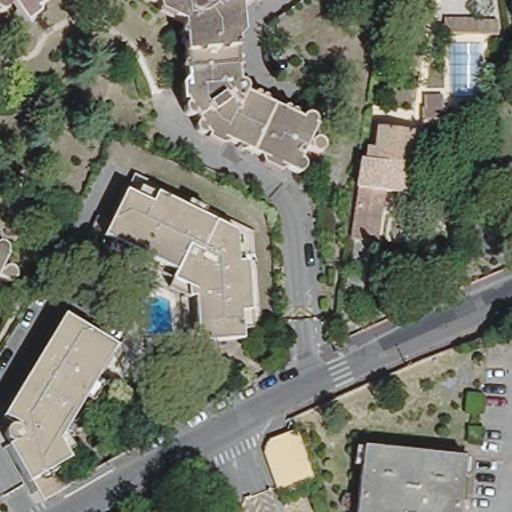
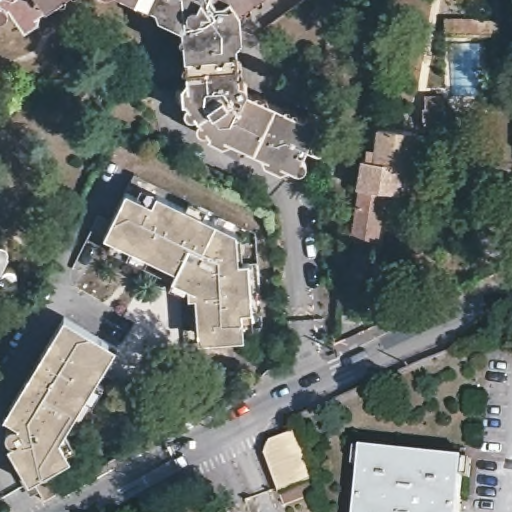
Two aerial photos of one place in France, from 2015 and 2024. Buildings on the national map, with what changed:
unchanged [(7,2),(4,5),(2,5),(0,5),(0,0),(8,0),(7,2)]
unchanged [(22,14),(12,0),(42,0),(22,14)]
unchanged [(233,6),(240,86),(320,122),(311,139),(313,140),(316,138),(319,137),(322,137),(323,137),(325,139),(327,142),(327,144),(327,147),(326,149),(323,152),(320,153),(318,153),(307,147),(298,167),(215,129),(212,132),(186,97),(190,96),(184,20),(172,14),(175,6),(162,0),(243,0),(233,6)]
unchanged [(340,11),(285,47),(270,24),(305,0),(333,0),(340,11)]
unchanged [(483,18),(483,20),(503,20),(503,36),(450,36),(450,18),(483,18)]
unchanged [(455,113),(455,136),(423,136),(423,113),(425,113),(425,101),(442,100),(443,113),(455,113)]
unchanged [(410,191),(400,197),(385,195),(380,235),(377,249),(351,245),(359,191),(357,190),(360,164),(360,163),(373,165),(378,129),(396,130),(395,135),(415,136),(410,191)]
unchanged [(257,235),(262,341),(242,343),(212,344),(211,328),(196,329),(195,299),(188,299),(188,289),(172,281),(177,273),(105,237),(101,245),(88,238),(92,230),(100,216),(112,223),(137,175),(257,235)]
unchanged [(1,264),(4,264),(5,262),(7,261),(8,260),(10,260),(12,260),(14,261),(15,262),(17,264),(18,266),(17,268),(17,272),(15,274),(13,275),(12,276),(10,276),(7,275),(5,274),(0,271),(0,242),(10,247),(1,264)]
unchanged [(63,458),(53,464),(65,484),(47,494),(36,474),(32,476),(15,444),(20,442),(18,441),(15,438),(14,434),(15,429),(18,425),(22,423),(25,423),(10,415),(63,310),(118,338),(105,364),(103,363),(59,450),(63,458)]
unchanged [(262,450),(269,438),(302,428),(317,477),(279,490),(262,450)]
unchanged [(459,512),(358,512),(365,441),(465,453),(459,512)]

